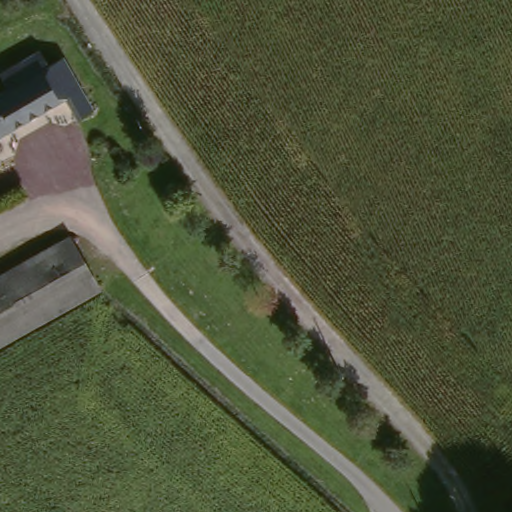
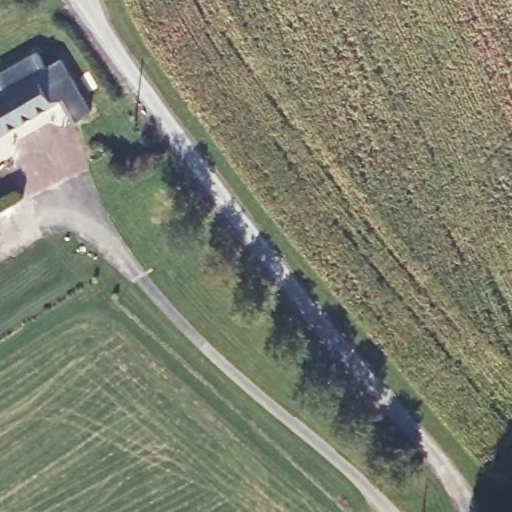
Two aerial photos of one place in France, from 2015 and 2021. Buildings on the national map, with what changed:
unchanged [(0,79),(0,74),(38,53),(47,68),(62,59),(92,111),(77,119),(64,97),(0,133),(0,94),(6,90),(0,79)]
demolished [(97,294),(0,350),(0,280),(56,248),(71,240),(97,294)]

